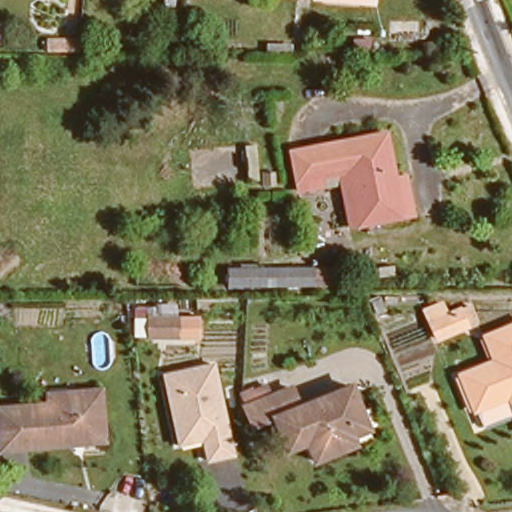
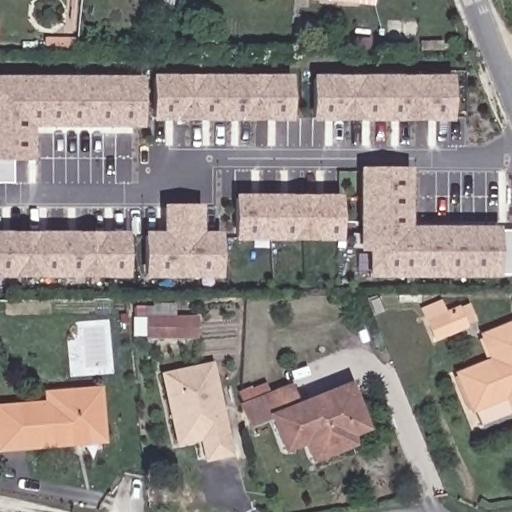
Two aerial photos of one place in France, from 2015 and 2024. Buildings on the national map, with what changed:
unchanged [(294,0),(303,0),(302,1),(294,0)]
new [(460,73),(460,120),(317,119),(319,74),(460,73)]
new [(297,74),(297,119),(157,117),(160,75),(297,74)]
new [(149,125),(41,127),(40,160),(17,158),(16,183),(0,183),(0,77),(150,75),(149,125)]
demolished [(395,211),(352,218),(342,166),(291,176),(288,165),(285,147),(381,129),(387,166),(388,175),(395,211)]
new [(416,166),(417,225),(505,225),(505,275),(367,277),(366,168),(416,166)]
new [(348,192),(347,240),(242,239),(242,195),(348,192)]
new [(166,231),(167,203),(207,201),(208,232),(229,230),(227,277),(149,278),(150,231),(166,231)]
demolished [(477,234),(452,234),(452,216),(477,216),(477,234)]
new [(132,278),(0,278),(0,233),(135,231),(132,278)]
demolished [(317,284),(236,285),(236,270),(317,269),(317,284)]
unchanged [(456,307),(461,324),(452,327),(430,335),(422,319),(447,310),(456,307)]
unchanged [(171,325),(149,326),(147,309),(170,308),(171,325)]
unchanged [(476,400),(472,402),(457,369),(490,356),(480,330),(512,318),(512,407),(483,417),(476,400)]
unchanged [(234,456),(204,463),(201,444),(177,448),(161,374),(215,362),(234,456)]
unchanged [(303,455),(297,436),(276,444),(262,412),(242,418),(234,400),(281,384),(287,402),(338,384),(347,404),(354,401),(363,428),(342,436),(345,441),(303,455)]
unchanged [(0,448),(0,403),(52,399),(52,390),(66,389),(97,388),(100,428),(101,442),(74,444),(0,448)]

